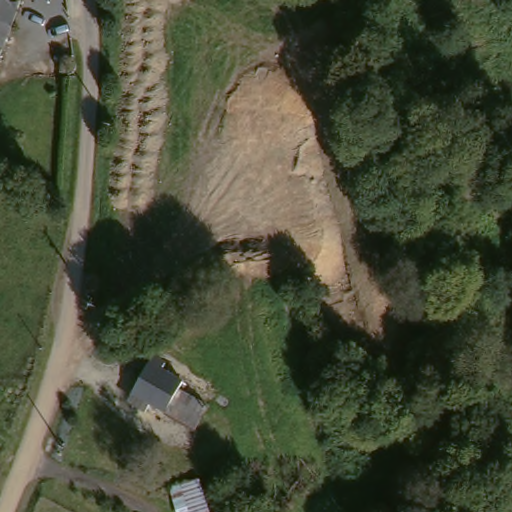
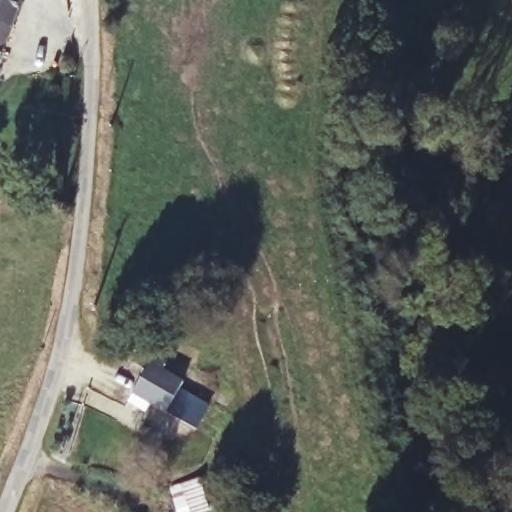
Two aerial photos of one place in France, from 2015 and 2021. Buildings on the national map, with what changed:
unchanged [(25,0),(2,56),(0,55),(0,0),(25,0)]
unchanged [(0,60),(0,55),(2,56),(0,60)]
unchanged [(59,66),(61,66),(61,59),(75,58),(77,85),(59,85),(59,78),(59,66)]
unchanged [(185,377),(180,389),(210,406),(200,427),(160,406),(155,404),(150,413),(130,403),(150,364),(152,361),(185,377)]
unchanged [(216,512),(197,512),(183,492),(195,484),(207,477),(225,500),(217,511),(216,512)]

